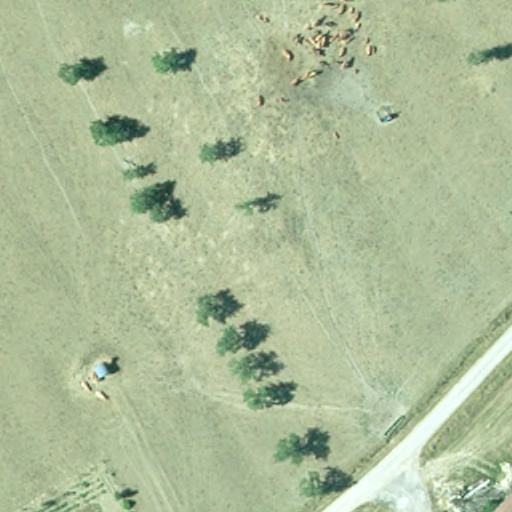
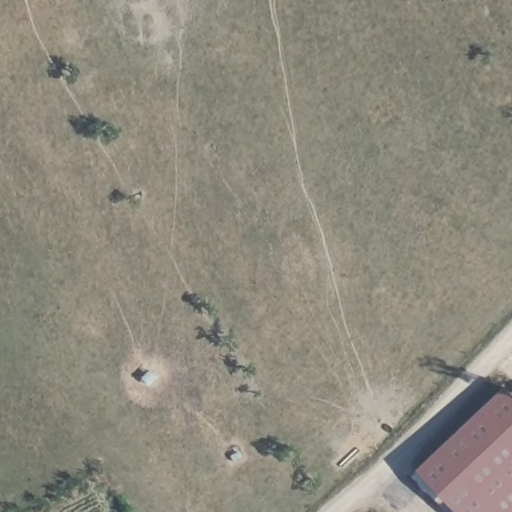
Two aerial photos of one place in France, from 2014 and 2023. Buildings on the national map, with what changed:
new [(415,469),(503,385),(512,394),(512,495),(494,512),(456,512),(415,469)]
unchanged [(512,495),(512,512),(494,512),(512,495)]

